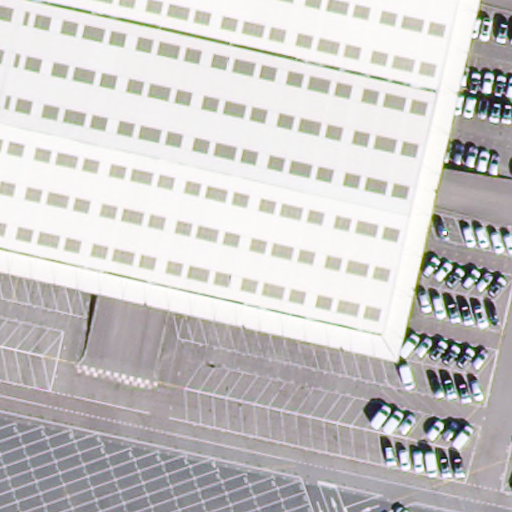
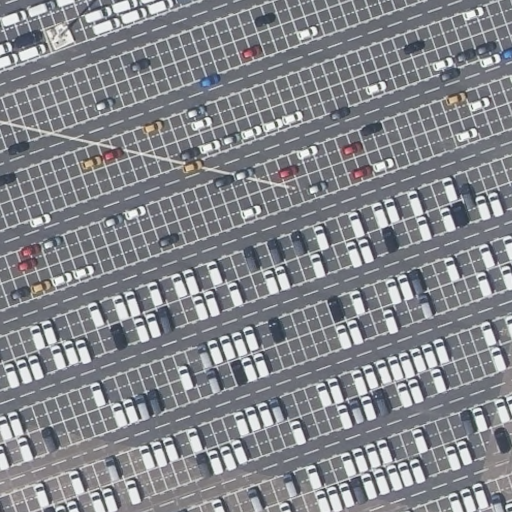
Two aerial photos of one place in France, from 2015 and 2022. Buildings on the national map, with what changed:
demolished [(465,0),(388,345),(0,257),(0,0),(465,0)]

